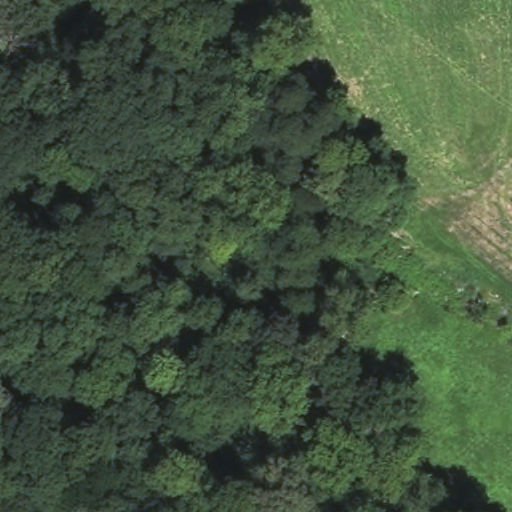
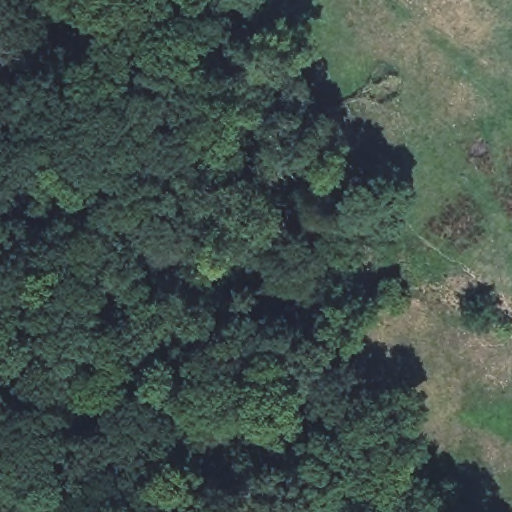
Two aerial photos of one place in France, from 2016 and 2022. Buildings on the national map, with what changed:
[]

